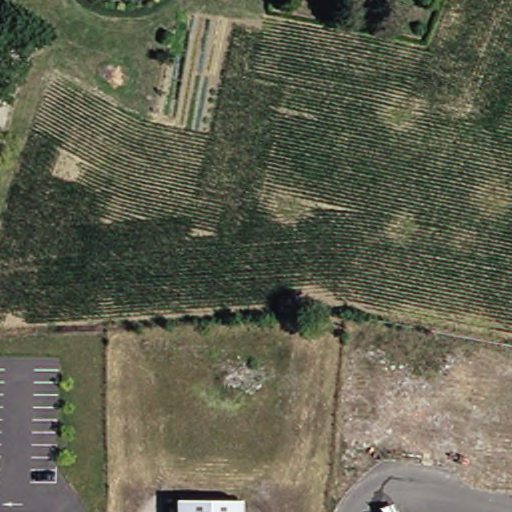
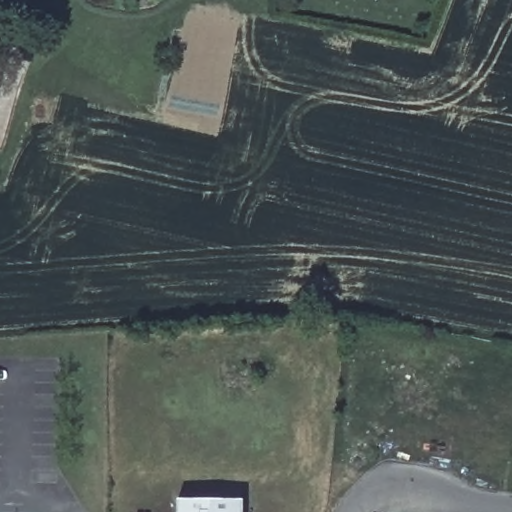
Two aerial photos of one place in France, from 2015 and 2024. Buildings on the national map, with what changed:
unchanged [(243,501),(243,512),(177,512),(177,500),(243,501)]

